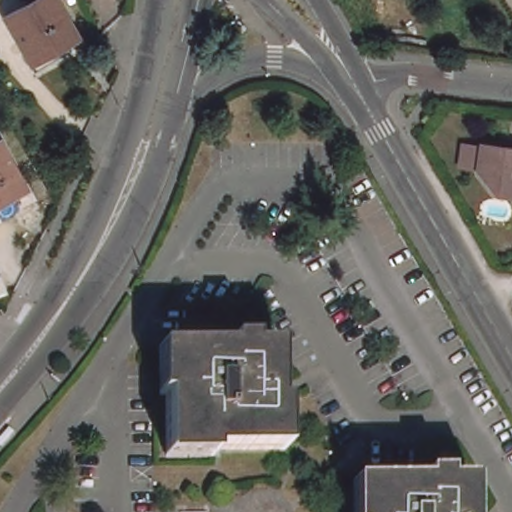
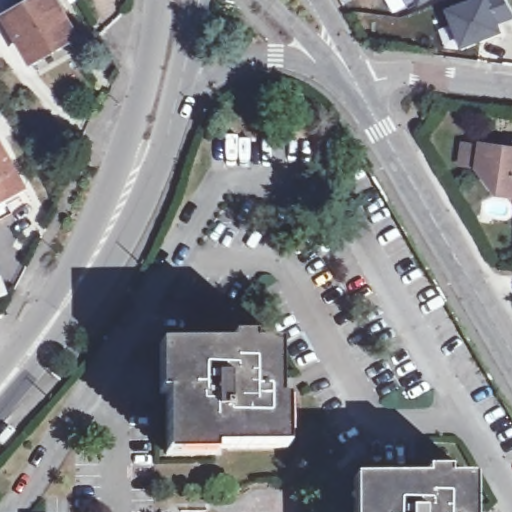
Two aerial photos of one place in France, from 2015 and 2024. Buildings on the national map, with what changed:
unchanged [(31,0),(57,0),(76,33),(32,57),(7,14),(31,0)]
new [(385,0),(426,0),(393,14),(385,0)]
new [(508,0),(512,9),(512,18),(500,24),(504,31),(458,48),(442,8),(463,0),(508,0)]
unchanged [(1,141),(25,186),(0,200),(0,142),(1,141)]
unchanged [(481,171),(482,167),(458,163),(461,141),(485,145),(512,149),(512,194),(499,192),(481,171)]
unchanged [(168,457),(167,394),(161,393),(161,345),(233,344),(232,338),(255,338),(255,344),(280,344),(281,400),(288,400),(288,449),(216,450),(216,456),(168,457)]
unchanged [(355,479),(426,478),(426,471),(449,471),(449,478),(475,478),(475,512),(355,512),(355,479)]

